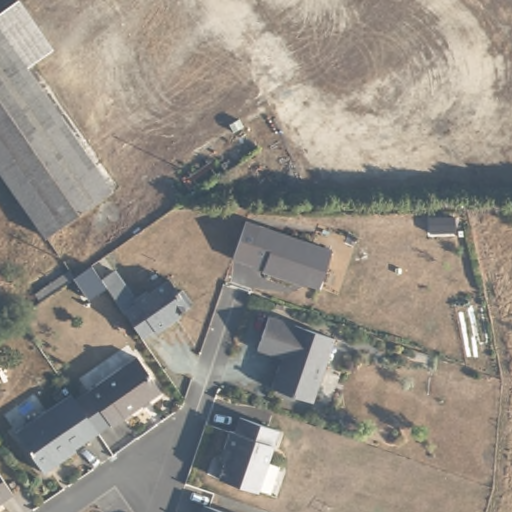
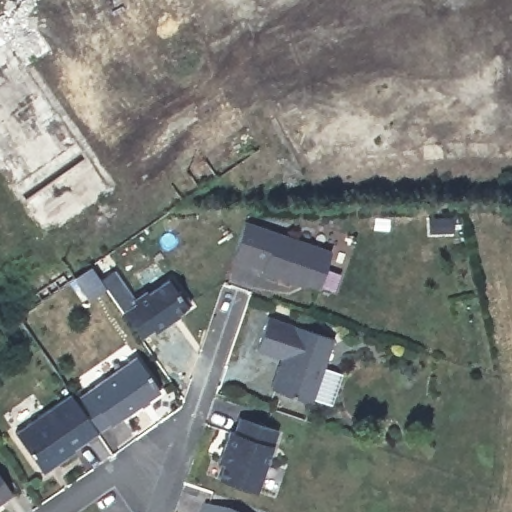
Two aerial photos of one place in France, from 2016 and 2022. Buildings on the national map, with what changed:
demolished [(46,236),(0,170),(0,31),(111,190),(46,236)]
unchanged [(231,263),(244,226),(330,256),(317,294),(294,286),(292,288),(260,277),(261,274),(231,263)]
unchanged [(124,310),(108,286),(91,298),(76,278),(94,266),(99,274),(104,280),(116,271),(136,301),(150,292),(151,294),(172,280),(181,293),(184,291),(193,304),(181,313),(183,315),(159,331),(157,329),(144,338),(142,335),(124,310)]
unchanged [(76,278),(75,279),(42,301),(36,294),(70,271),(76,278)]
unchanged [(253,351),(262,322),(327,345),(306,408),(265,393),(276,361),(253,351)]
unchanged [(133,357),(158,392),(110,426),(109,424),(95,434),(71,400),(86,390),(133,357)]
unchanged [(71,400),(95,434),(71,449),(74,452),(41,474),(12,433),(68,394),(71,400)]
unchanged [(242,419),(281,432),(260,494),(221,480),(227,464),(222,463),(233,432),(237,433),(242,419)]
unchanged [(0,500),(0,484),(8,495),(0,500)]
unchanged [(214,512),(194,512),(196,506),(214,512)]

